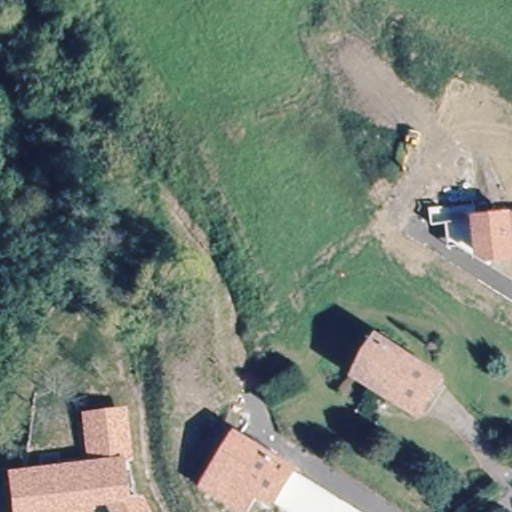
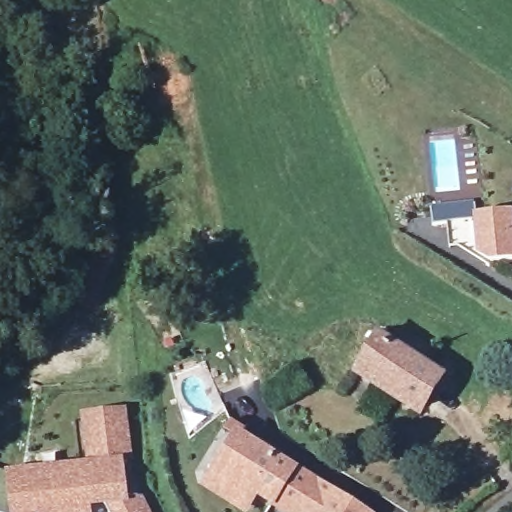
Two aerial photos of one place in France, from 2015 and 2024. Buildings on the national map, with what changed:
unchanged [(512,210),(512,260),(484,263),(475,254),(473,214),(512,210)]
unchanged [(358,372),(378,342),(436,382),(419,412),(358,372)]
unchanged [(85,461),(80,412),(127,407),(133,460),(123,461),(128,496),(142,496),(150,512),(106,512),(103,506),(91,507),(92,512),(10,512),(5,472),(85,461)]
unchanged [(298,468),(274,507),(256,497),(247,512),(240,512),(199,486),(236,429),(298,468)]
new [(372,512),(281,512),(274,507),(298,468),(372,512)]

